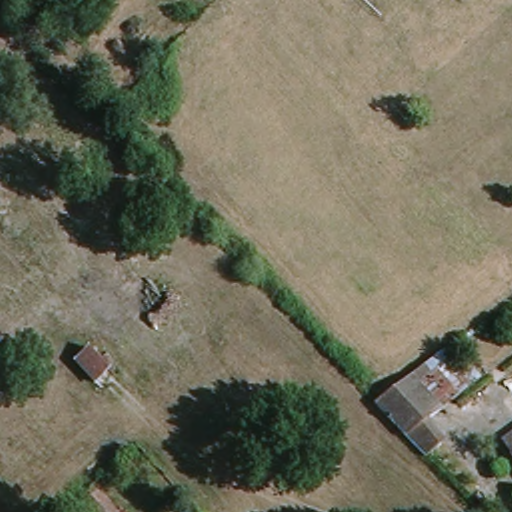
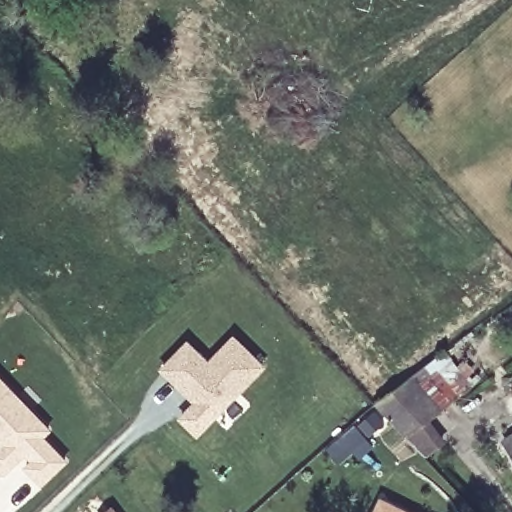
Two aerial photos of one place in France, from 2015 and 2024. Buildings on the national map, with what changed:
demolished [(148,375),(122,400),(85,362),(111,336),(148,375)]
new [(189,340),(210,361),(234,336),(263,365),(198,430),(182,415),(198,399),(164,366),(189,340)]
unchanged [(385,401),(467,339),(494,375),(443,415),(460,435),(440,455),(385,401)]
new [(46,435),(69,461),(40,488),(16,463),(3,475),(0,472),(0,374),(53,429),(46,435)]
new [(99,490),(117,512),(77,512),(99,490)]
new [(419,512),(377,512),(385,495),(419,512)]

